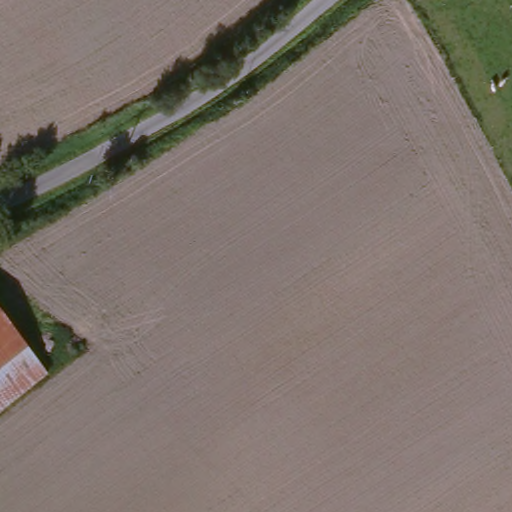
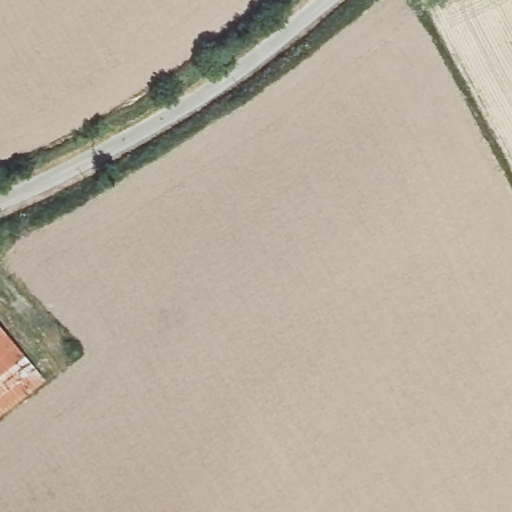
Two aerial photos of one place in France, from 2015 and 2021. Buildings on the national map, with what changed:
unchanged [(23,351),(0,370),(0,322),(23,351)]
unchanged [(23,351),(44,376),(0,411),(0,370),(23,351)]

